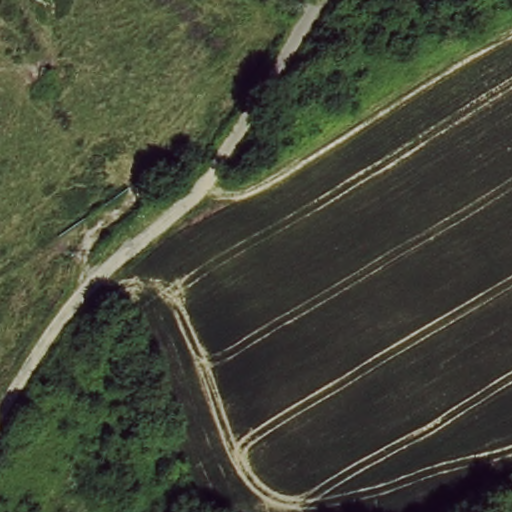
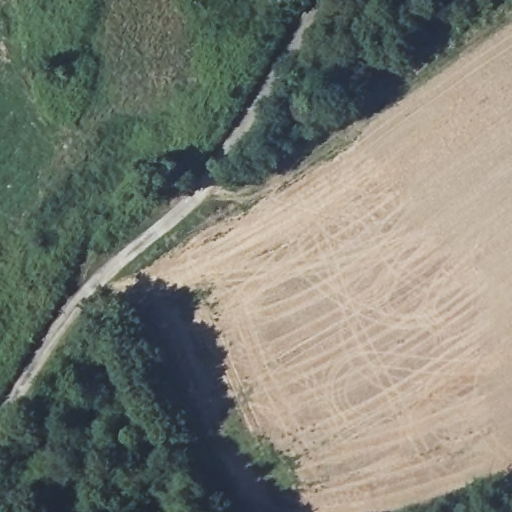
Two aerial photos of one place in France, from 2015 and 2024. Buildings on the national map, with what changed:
unchanged [(167,166),(175,182),(149,197),(139,182),(167,166)]

